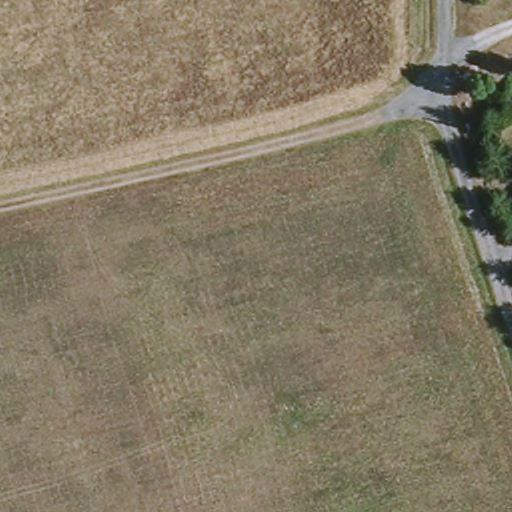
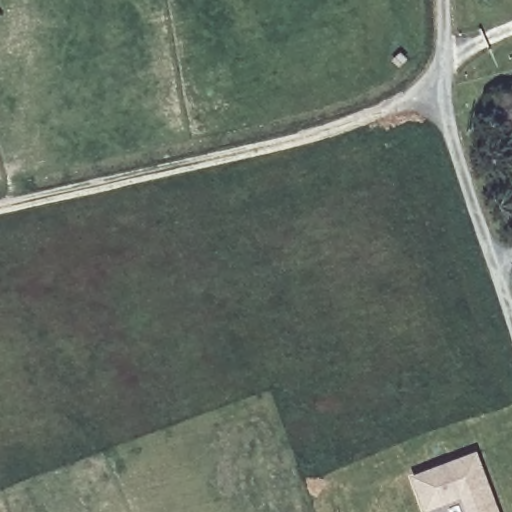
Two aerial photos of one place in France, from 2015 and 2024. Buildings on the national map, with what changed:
new [(461,493),(424,506),(412,474),(473,451),(496,512),(468,512),(461,493)]

